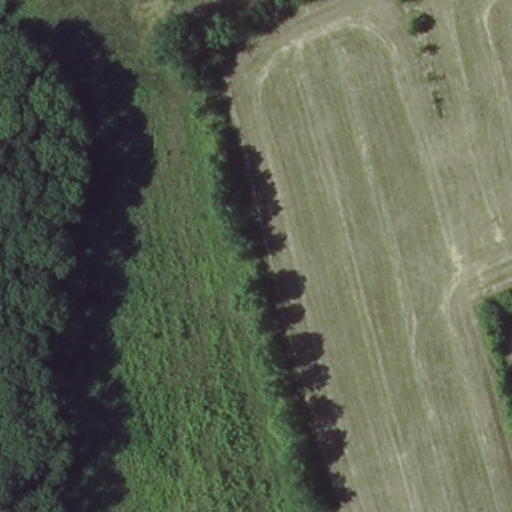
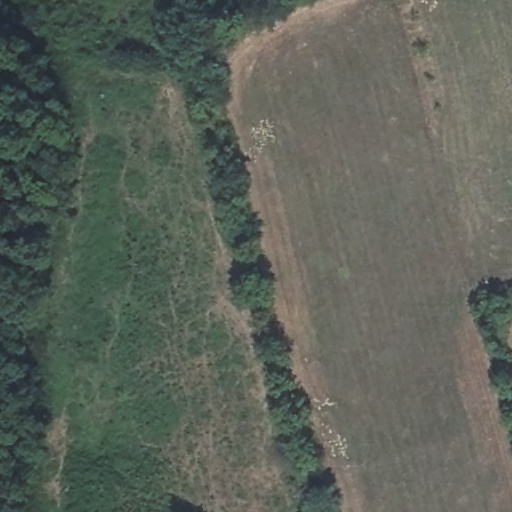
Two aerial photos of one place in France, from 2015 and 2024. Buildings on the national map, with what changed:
[]

